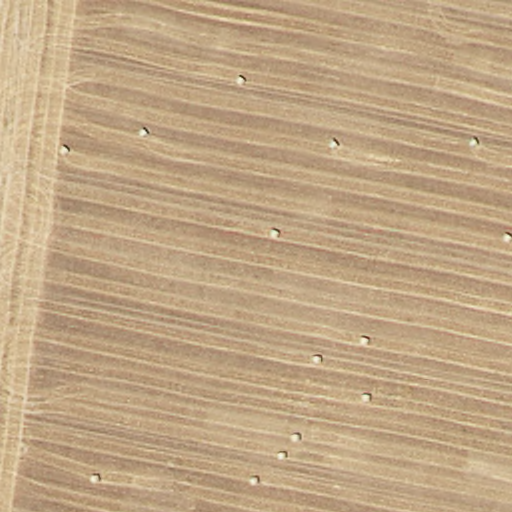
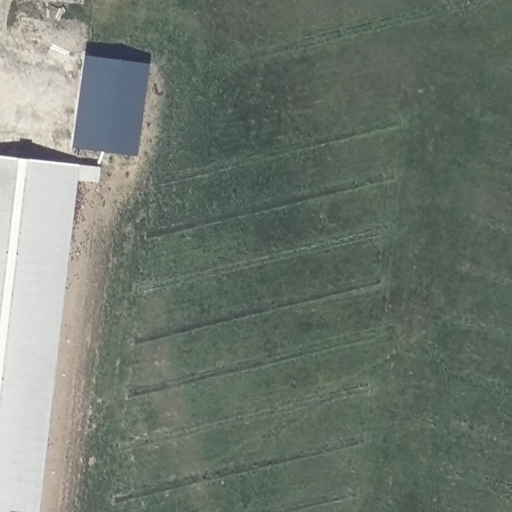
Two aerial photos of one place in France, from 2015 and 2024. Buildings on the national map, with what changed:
new [(136,159),(74,148),(88,57),(149,66),(136,159)]
new [(39,512),(0,512),(0,160),(74,168),(39,512)]

